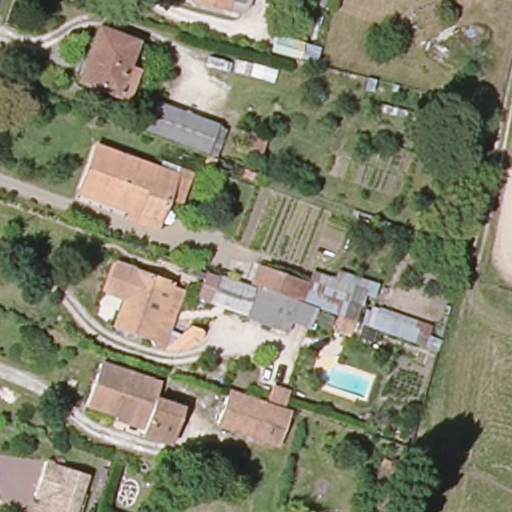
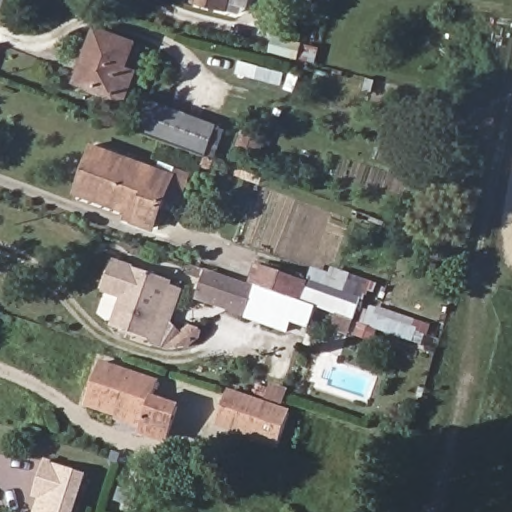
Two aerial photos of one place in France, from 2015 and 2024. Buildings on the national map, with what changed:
unchanged [(199,0),(230,0),(229,7),(199,0)]
unchanged [(131,99),(116,94),(79,80),(100,20),(139,34),(128,63),(140,69),(131,99)]
unchanged [(189,145),(144,128),(155,99),(220,122),(210,153),(189,145)]
unchanged [(240,147),(248,127),(267,134),(260,154),(240,147)]
unchanged [(129,201),(77,183),(92,143),(170,170),(182,174),(175,197),(164,193),(151,223),(137,219),(124,214),(129,201)]
unchanged [(110,323),(120,300),(104,291),(112,260),(187,285),(166,342),(110,323)]
unchanged [(310,278),(315,270),(335,278),(340,267),(374,279),(367,298),(427,321),(421,342),(360,325),(350,340),(333,335),(338,315),(320,307),(310,328),(294,321),(288,331),(200,296),(207,270),(249,280),(255,261),(310,278)]
unchanged [(100,362),(160,381),(156,397),(180,404),(168,438),(145,431),(147,421),(87,400),(100,362)]
unchanged [(280,445),(218,424),(229,392),(288,412),(280,445)]
unchanged [(85,475),(73,512),(37,512),(41,499),(34,497),(45,462),(85,475)]

